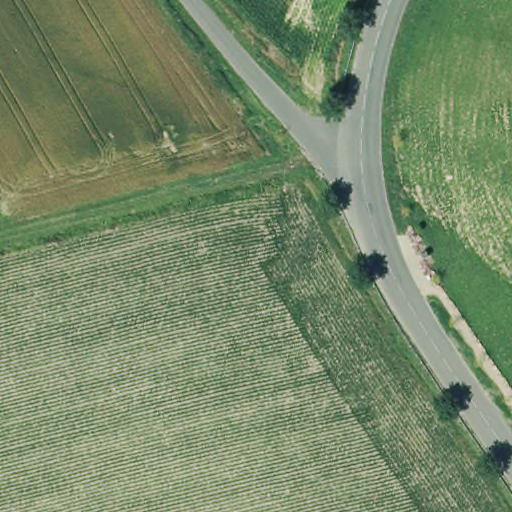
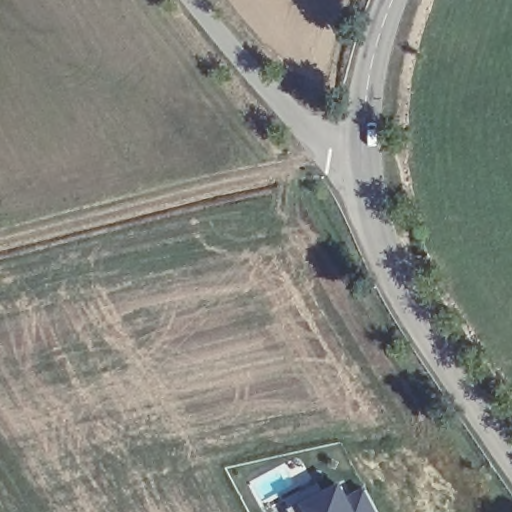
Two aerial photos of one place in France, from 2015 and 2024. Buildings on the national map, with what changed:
new [(350,493),(365,486),(379,512),(288,512),(285,507),(342,480),(350,493)]

